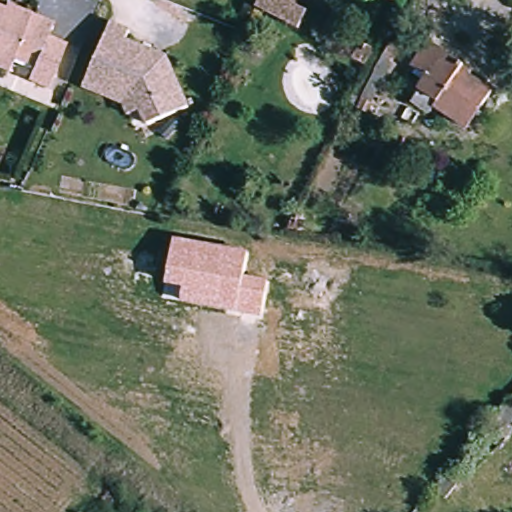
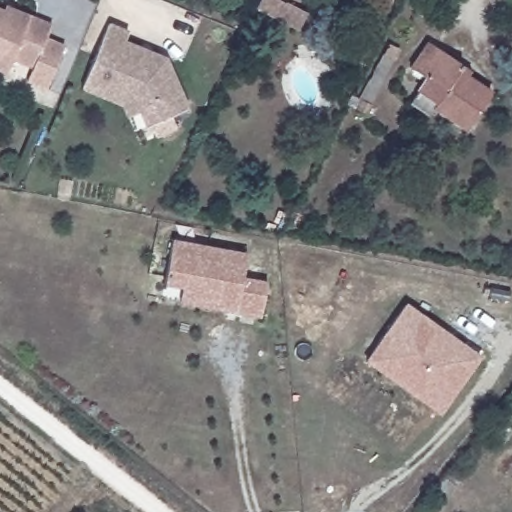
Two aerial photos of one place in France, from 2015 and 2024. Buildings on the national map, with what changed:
unchanged [(260,0),(303,0),(298,9),(308,15),(300,30),(257,7),(260,0)]
unchanged [(0,1),(5,3),(46,17),(41,32),(60,38),(44,83),(25,76),(30,63),(7,54),(2,69),(0,68),(0,1)]
unchanged [(122,102),(100,93),(80,85),(106,20),(126,28),(122,37),(164,54),(187,104),(146,123),(139,108),(127,113),(122,102)]
unchanged [(394,38),(405,44),(399,54),(389,49),(394,38)]
unchanged [(425,78),(411,67),(429,42),(464,67),(470,72),(467,77),(488,92),(461,129),(431,107),(435,102),(417,89),(425,78)]
unchanged [(246,251),(242,271),(268,279),(261,317),(236,312),(182,304),(184,288),(167,286),(174,238),(246,251)]
new [(454,333),(482,353),(440,410),(413,391),(424,377),(423,371),(398,352),(389,364),(370,350),(408,299),(448,328),(454,333)]
new [(389,364),(398,352),(423,371),(424,377),(413,391),(366,356),(370,350),(389,364)]
unchanged [(512,404),(512,420),(494,443),(479,431),(506,399),(512,404)]
unchanged [(452,487),(440,502),(427,492),(440,478),(452,487)]

